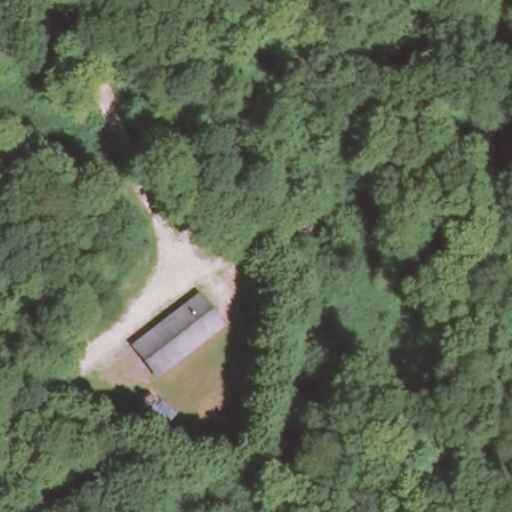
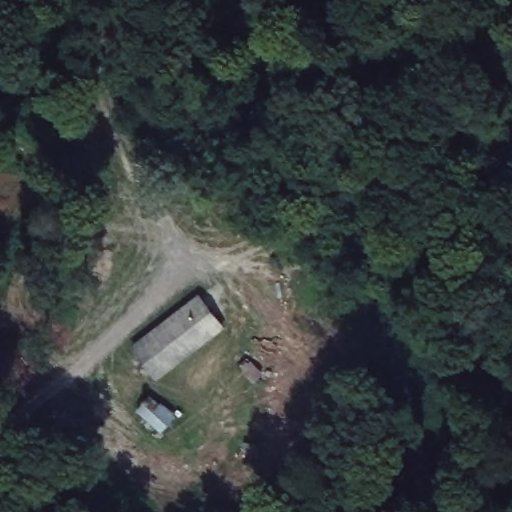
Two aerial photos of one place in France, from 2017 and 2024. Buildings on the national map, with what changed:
unchanged [(131,349),(194,294),(224,329),(155,382),(131,349)]
unchanged [(197,459),(177,436),(192,423),(213,447),(197,459)]

